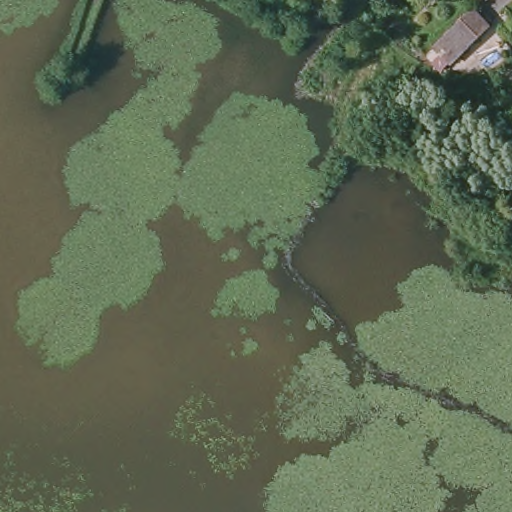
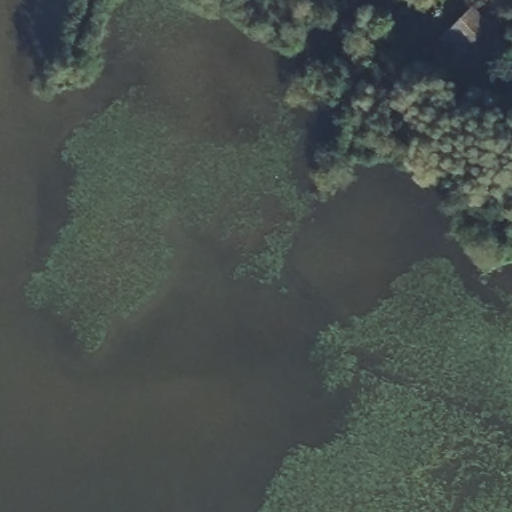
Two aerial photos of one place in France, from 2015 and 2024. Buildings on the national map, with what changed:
unchanged [(462,11),(485,32),(455,63),(434,43),(462,11)]

